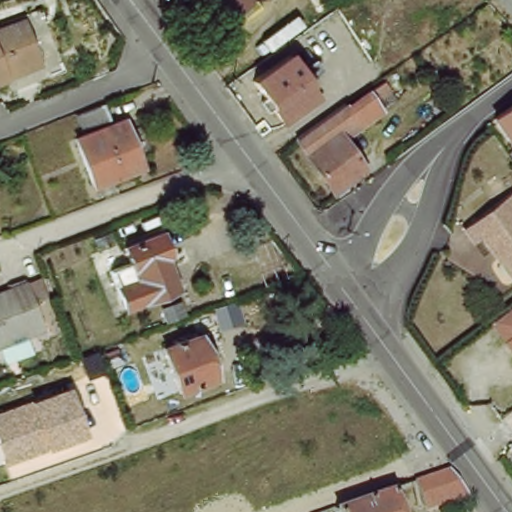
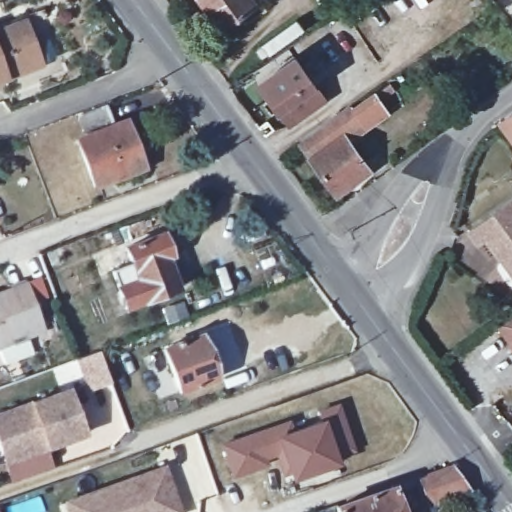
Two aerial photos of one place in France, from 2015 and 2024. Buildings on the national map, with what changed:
unchanged [(222,19),(208,0),(249,0),(222,19)]
unchanged [(12,81),(0,86),(0,36),(10,31),(30,23),(33,31),(45,60),(48,67),(12,81)]
unchanged [(280,109),(261,82),(295,57),(314,84),(280,109)]
unchanged [(357,112),(395,84),(400,95),(389,103),(396,112),(352,144),(370,172),(340,194),(303,140),(352,105),(357,112)]
unchanged [(113,126),(83,138),(77,119),(108,108),(113,126)]
unchanged [(512,122),(512,133),(506,125),(512,122)]
unchanged [(95,192),(80,150),(125,132),(141,173),(95,192)]
unchanged [(480,244),(470,230),(512,199),(512,271),(498,252),(488,238),(480,244)]
unchanged [(167,263),(176,290),(124,309),(110,269),(132,262),(126,246),(163,234),(172,261),(167,263)]
unchanged [(0,342),(0,294),(30,283),(33,292),(33,293),(45,289),(51,308),(40,312),(46,331),(27,337),(26,333),(0,342)]
unchanged [(512,314),(512,343),(498,324),(512,314)]
unchanged [(187,392),(171,349),(209,333),(225,378),(187,392)]
unchanged [(0,455),(0,413),(65,389),(82,434),(44,448),(3,463),(0,455)]
new [(291,417),(293,424),(319,417),(317,410),(341,401),(357,450),(335,458),(337,465),(287,479),(278,450),(256,457),(259,466),(231,476),(219,440),(291,417)]
unchanged [(472,491),(432,504),(423,477),(453,466),(472,491)]
new [(166,467),(183,512),(69,512),(65,500),(166,467)]
unchanged [(407,512),(343,512),(342,508),(398,487),(407,512)]

